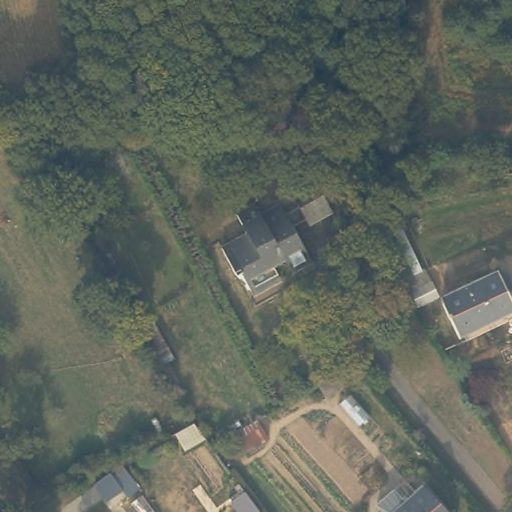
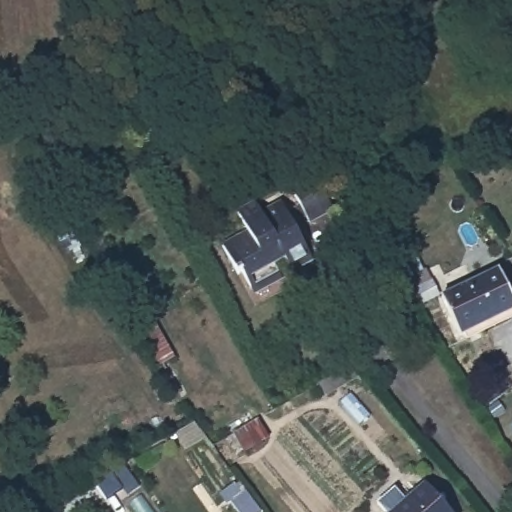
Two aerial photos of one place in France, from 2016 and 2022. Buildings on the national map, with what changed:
unchanged [(65,157),(75,179),(80,177),(89,209),(75,214),(67,197),(53,162),(65,157)]
unchanged [(340,211),(317,225),(313,219),(300,228),(320,262),(299,274),(291,261),(279,268),(283,276),(257,292),(247,274),(242,277),(227,250),(252,235),(243,218),(263,206),(269,215),(287,205),(292,215),(306,207),(298,193),(321,179),(340,211)]
unchanged [(512,312),(471,337),(449,305),(504,272),(512,286),(512,312)]
unchanged [(419,299),(436,288),(447,306),(430,317),(419,299)]
unchanged [(147,355),(139,340),(127,317),(144,308),(172,356),(154,365),(147,355)]
unchanged [(323,394),(319,394),(313,387),(347,366),(353,374),(323,394)]
unchanged [(264,442),(242,456),(229,437),(232,435),(248,425),(253,422),(264,442)]
unchanged [(426,483),(450,512),(391,512),(426,483)]
unchanged [(231,502),(244,492),(259,512),(238,512),(231,502)]

